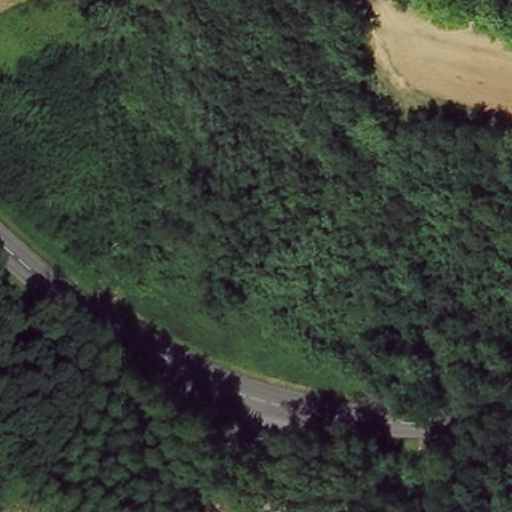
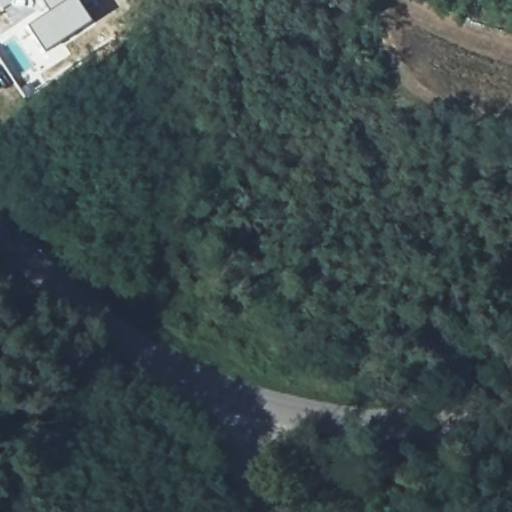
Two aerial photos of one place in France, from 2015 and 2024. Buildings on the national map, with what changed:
new [(48,11),(66,0),(77,0),(92,23),(44,57),(24,25),(48,11)]
new [(48,11),(40,0),(66,0),(48,11)]

